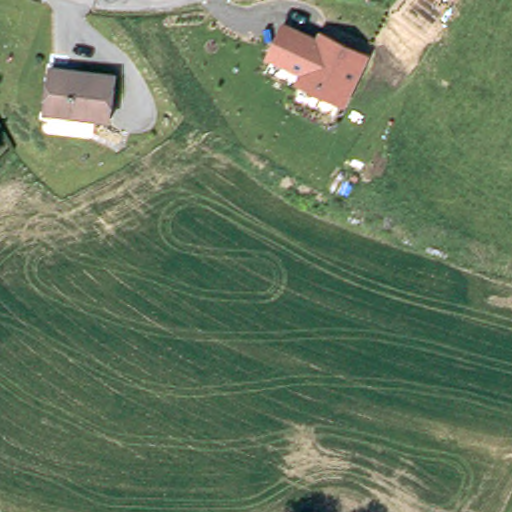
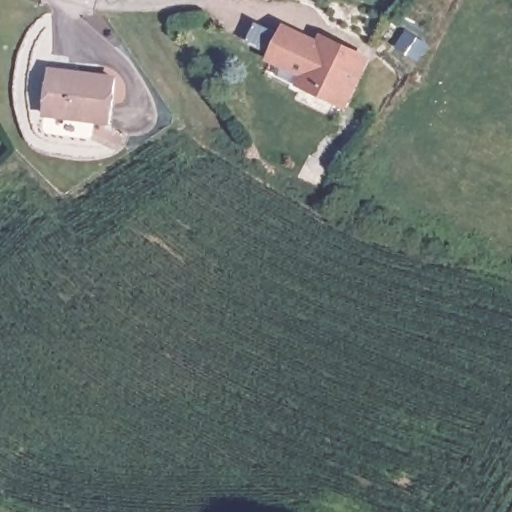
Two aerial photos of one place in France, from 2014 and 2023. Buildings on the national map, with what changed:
unchanged [(319,32),(370,56),(346,108),(296,85),(300,76),(267,60),(284,23),(317,38),(319,32)]
unchanged [(102,120),(40,110),(47,72),(47,66),(72,70),(110,76),(102,120)]

